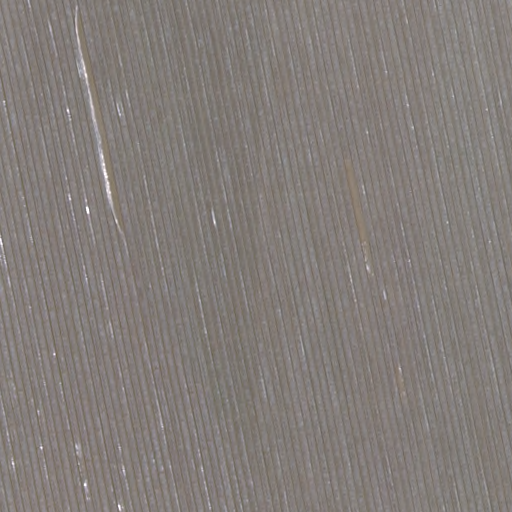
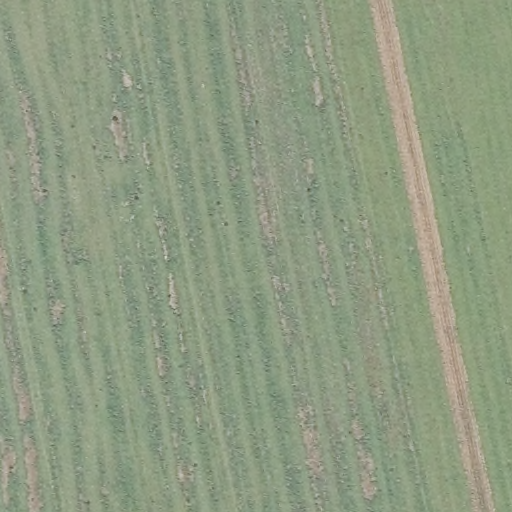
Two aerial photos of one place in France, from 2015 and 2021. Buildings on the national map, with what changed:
[]

